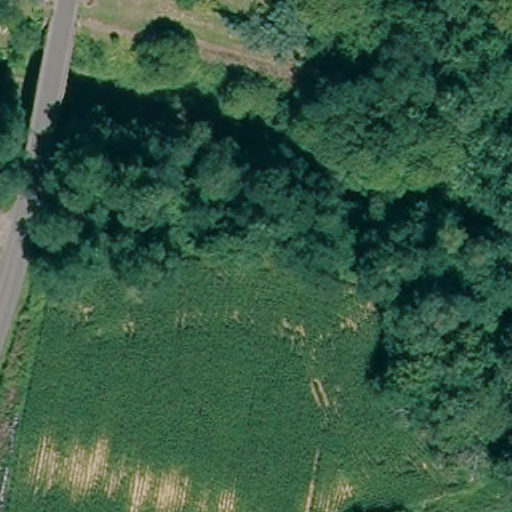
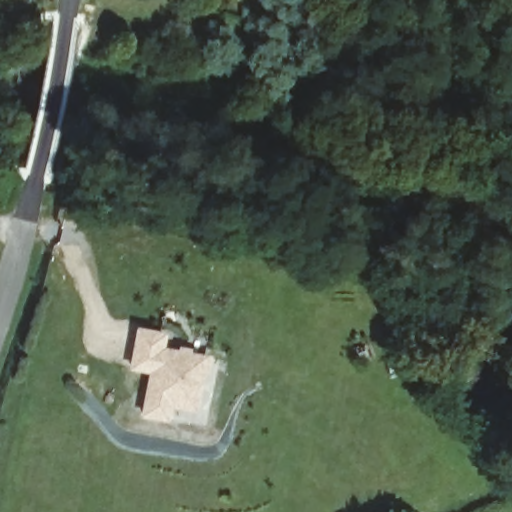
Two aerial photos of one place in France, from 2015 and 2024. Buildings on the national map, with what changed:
new [(166,332),(164,348),(178,350),(178,346),(191,348),(191,352),(211,355),(207,375),(204,373),(198,411),(172,407),(170,421),(141,416),(148,373),(129,370),(136,326),(166,332)]

